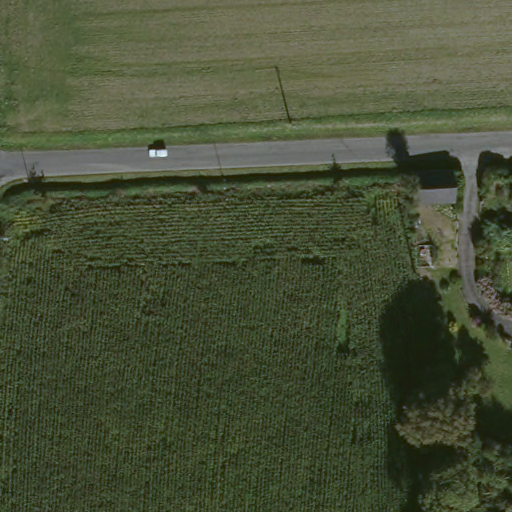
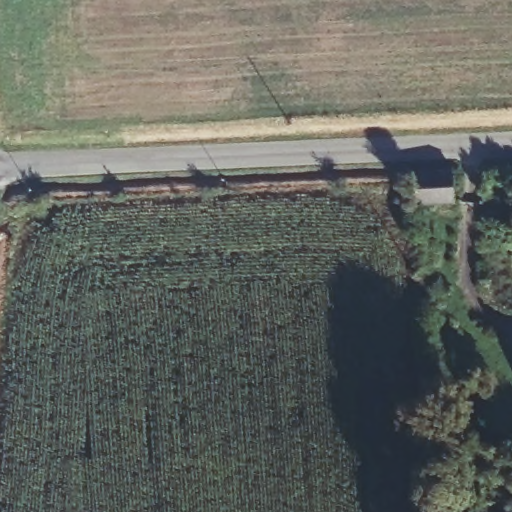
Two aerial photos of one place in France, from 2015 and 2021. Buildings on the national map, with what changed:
unchanged [(459,203),(423,205),(421,177),(458,174),(459,203)]

